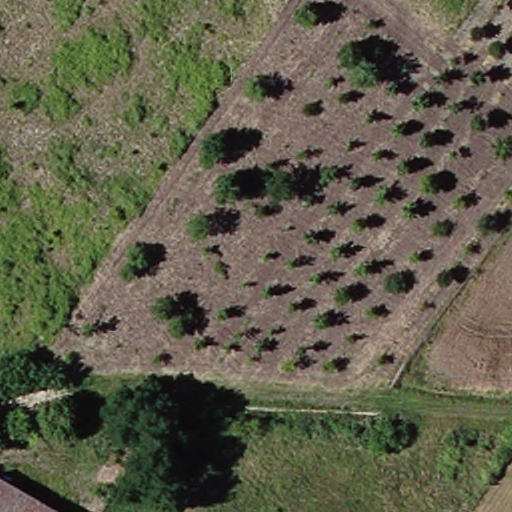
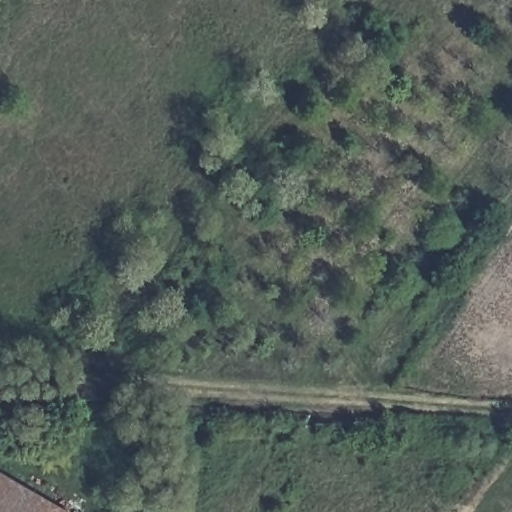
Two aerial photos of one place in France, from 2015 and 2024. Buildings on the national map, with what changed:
unchanged [(2,481),(52,512),(0,512),(0,479),(2,481)]

